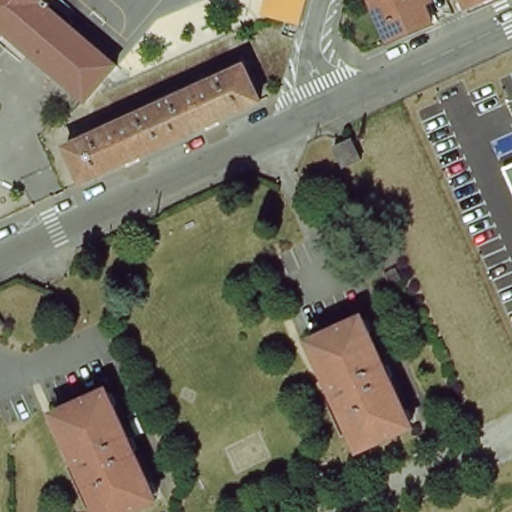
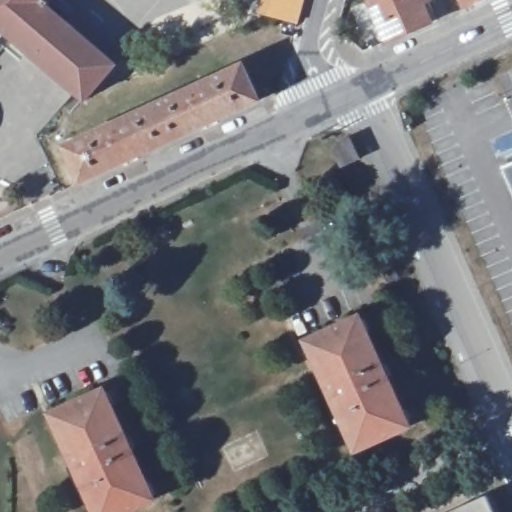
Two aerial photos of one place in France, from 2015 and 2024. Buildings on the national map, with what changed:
unchanged [(50,2),(117,60),(101,79),(86,96),(84,95),(5,27),(0,33),(0,0),(47,0),(50,2)]
unchanged [(273,0),(304,0),(297,24),(268,16),(273,0)]
unchanged [(423,4),(431,22),(388,41),(370,0),(430,0),(423,4)]
unchanged [(465,8),(462,0),(484,0),(465,8)]
unchanged [(249,60),(265,95),(86,177),(70,141),(249,60)]
unchanged [(333,146),(351,138),(360,160),(342,167),(333,146)]
new [(512,164),(512,191),(502,168),(512,164)]
unchanged [(410,421),(357,445),(348,425),(351,424),(320,354),(316,356),(307,335),(361,312),(410,421)]
unchanged [(96,502),(65,433),(61,435),(52,415),(105,390),(155,500),(128,512),(97,512),(93,504),(96,502)]
new [(493,512),(442,512),(485,492),(493,512)]

